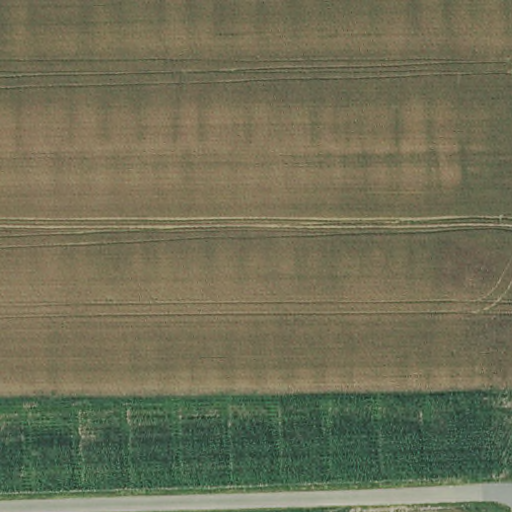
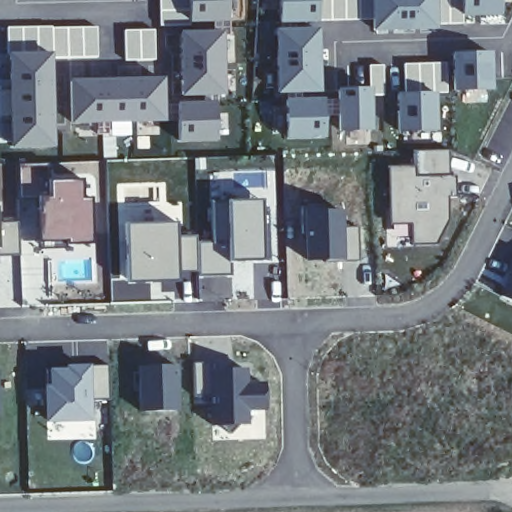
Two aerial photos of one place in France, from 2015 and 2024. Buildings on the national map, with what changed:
new [(172,32),(186,32),(186,0),(230,0),(230,33),(220,33),(220,150),(170,151),(170,127),(65,127),(65,77),(170,77),(172,32)]
new [(370,19),(357,20),(317,21),(277,22),(277,0),(316,0),(356,0),(435,0),(435,9),(439,9),(439,0),(460,0),(499,0),(499,16),(462,17),(462,22),(435,23),(435,27),(370,30),(370,19)]
new [(316,28),(317,65),(323,65),(324,92),(283,95),(273,95),(273,27),(316,28)]
new [(155,29),(156,60),(123,61),(122,29),(155,29)]
new [(53,51),(54,154),(2,154),(3,51),(53,51)]
new [(490,51),(490,90),(452,90),(451,51),(490,51)]
new [(402,63),(441,62),(442,80),(446,80),(446,92),(433,92),(402,91),(402,63)]
new [(381,87),(369,87),(369,78),(368,78),(367,65),(383,65),(381,87)]
new [(368,130),(337,131),(335,88),(369,87),(368,130)]
new [(402,91),(433,92),(432,131),(397,131),(395,92),(402,91)]
new [(324,92),(325,137),(285,140),(283,95),(324,92)]
new [(412,150),(448,149),(448,174),(454,174),(455,199),(448,199),(447,221),(434,245),(410,245),(408,225),(388,225),(387,166),(412,165),(412,150)]
new [(46,195),(46,181),(79,180),(80,197),(88,197),(90,244),(64,245),(64,242),(37,242),(36,196),(46,195)]
new [(196,276),(195,272),(176,272),(176,280),(131,282),(132,295),(135,295),(135,300),(110,303),(109,280),(125,280),(123,225),(173,223),(175,237),(195,236),(195,242),(210,242),(210,201),(225,200),(258,200),(261,262),(229,263),(230,275),(231,298),(198,300),(196,276)]
new [(340,207),(342,227),(355,226),(356,260),(304,261),(300,206),(340,207)]
new [(0,222),(16,222),(18,254),(0,255),(0,222)]
new [(20,305),(18,254),(43,254),(46,303),(20,305)]
new [(512,267),(512,301),(497,293),(512,267)]
new [(208,362),(208,366),(250,367),(250,382),(256,381),(261,410),(247,411),(247,425),(210,425),(210,405),(191,405),(190,363),(208,362)]
new [(45,367),(86,363),(106,365),(107,398),(87,400),(88,421),(42,422),(41,384),(45,383),(45,367)]
new [(175,363),(180,410),(138,411),(137,365),(175,363)]

